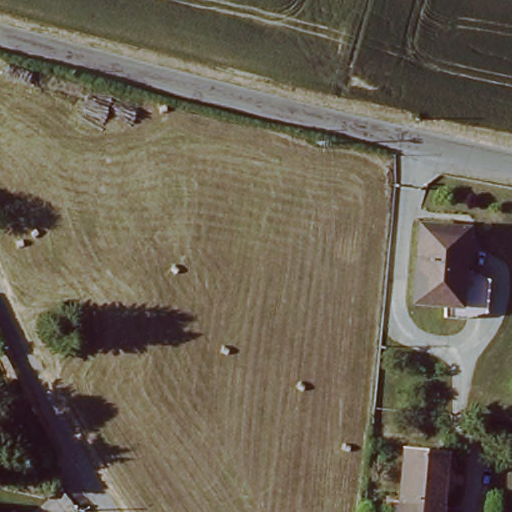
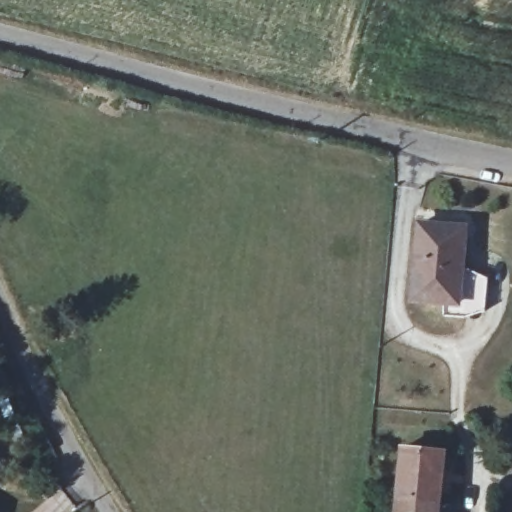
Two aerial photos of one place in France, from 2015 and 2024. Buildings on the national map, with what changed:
unchanged [(411,299),(417,228),(460,229),(452,303),(411,299)]
unchanged [(398,454),(436,459),(428,512),(390,512),(398,454)]

